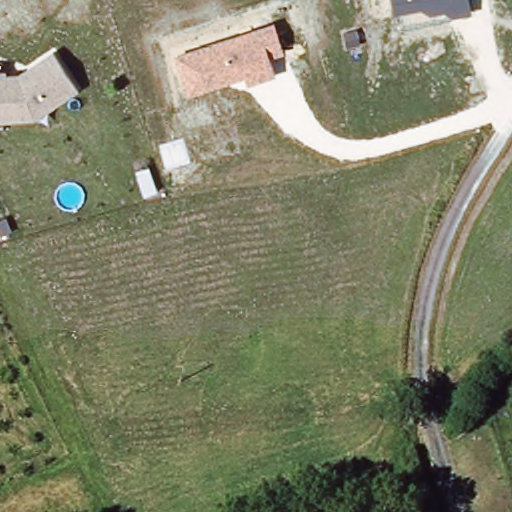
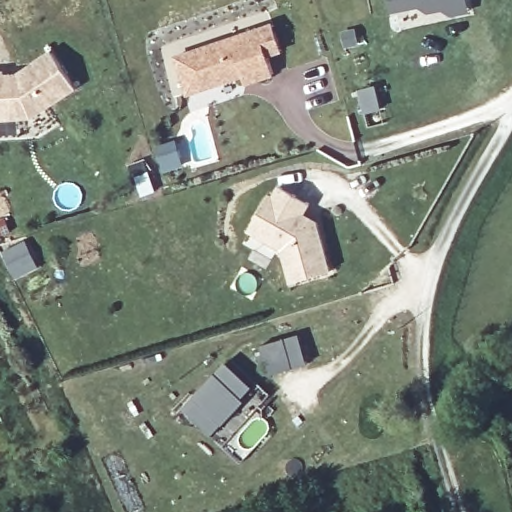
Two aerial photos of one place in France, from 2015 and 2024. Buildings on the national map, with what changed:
unchanged [(472,12),(453,16),(443,9),(429,13),(418,7),(395,12),(392,0),(469,0),(472,12)]
unchanged [(284,53),(271,58),(276,75),(248,84),(246,77),(187,97),(173,56),(273,22),(284,53)]
unchanged [(51,49),(77,89),(30,120),(0,121),(0,71),(17,71),(51,49)]
new [(312,204),(307,213),(319,221),(333,272),(292,283),(283,251),(247,231),(267,194),(272,197),(277,187),(312,204)]
new [(258,345),(302,333),(310,362),(267,375),(258,345)]
new [(257,388),(214,436),(181,408),(225,360),(257,388)]

